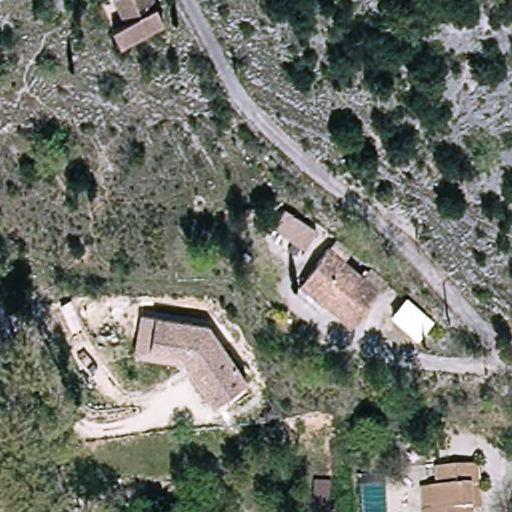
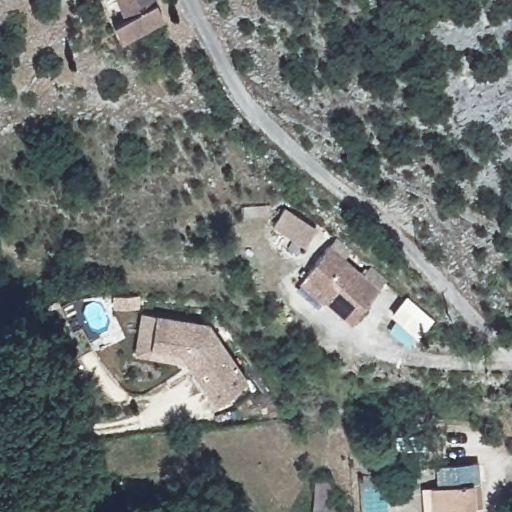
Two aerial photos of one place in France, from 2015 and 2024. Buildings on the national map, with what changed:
unchanged [(107,24),(120,19),(113,0),(149,0),(159,24),(115,42),(107,24)]
unchanged [(287,215),(316,235),(305,251),(276,231),(287,215)]
unchanged [(368,269),(382,282),(348,320),(301,278),(328,250),(336,240),(347,250),(339,260),(360,278),(368,269)]
unchanged [(409,305),(432,323),(420,340),(396,320),(409,305)]
unchanged [(246,381),(213,404),(177,351),(148,346),(154,316),(207,325),(246,381)]
unchanged [(426,510),(434,510),(434,486),(442,486),(442,466),(483,466),(483,487),(483,510),(475,510),(475,512),(426,512),(426,510)]

